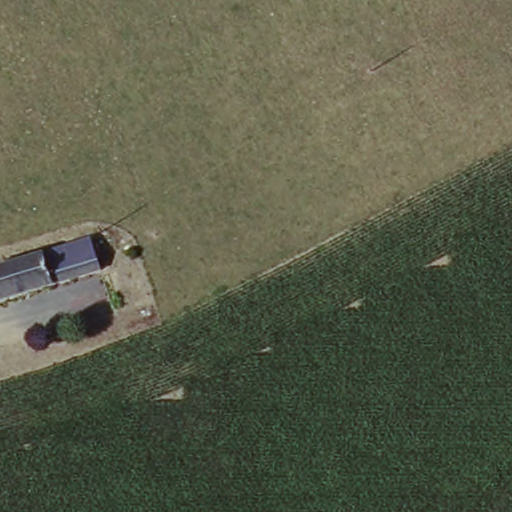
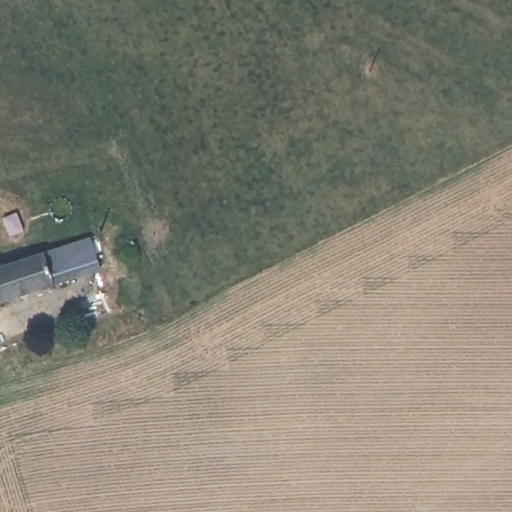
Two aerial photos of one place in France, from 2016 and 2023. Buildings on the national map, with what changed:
unchanged [(96,253),(104,270),(0,306),(0,271),(92,240),(96,253)]

